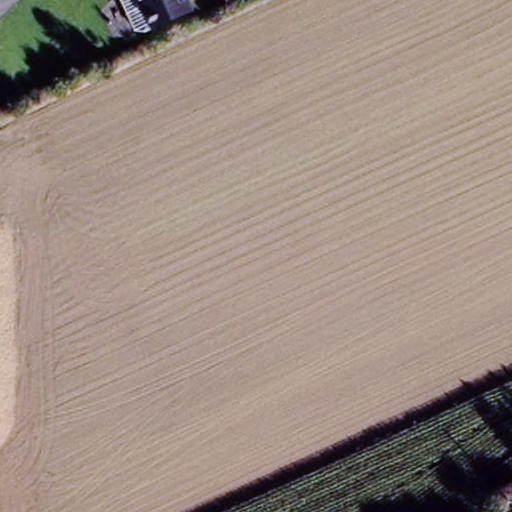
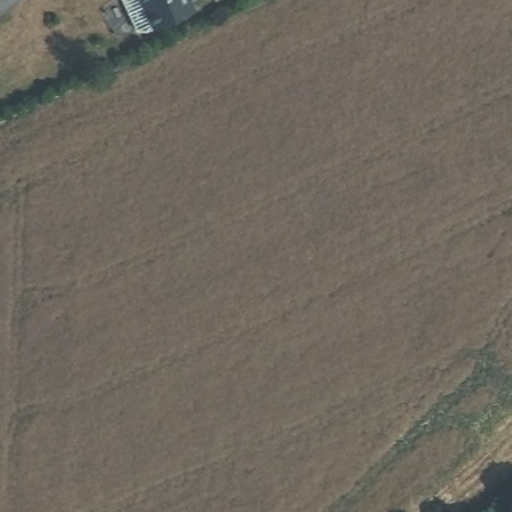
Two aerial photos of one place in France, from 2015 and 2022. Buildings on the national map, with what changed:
unchanged [(200,14),(162,30),(141,31),(122,0),(193,0),(200,14)]

